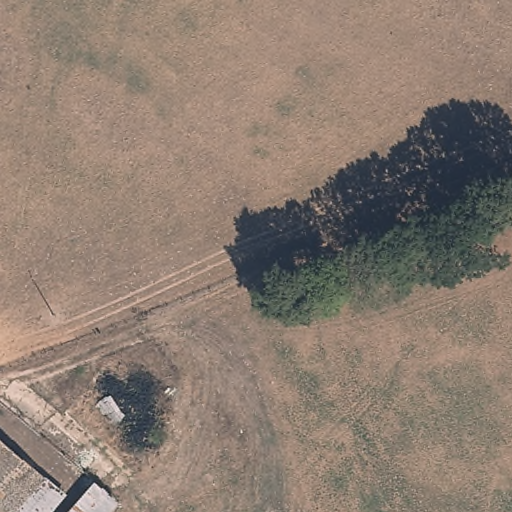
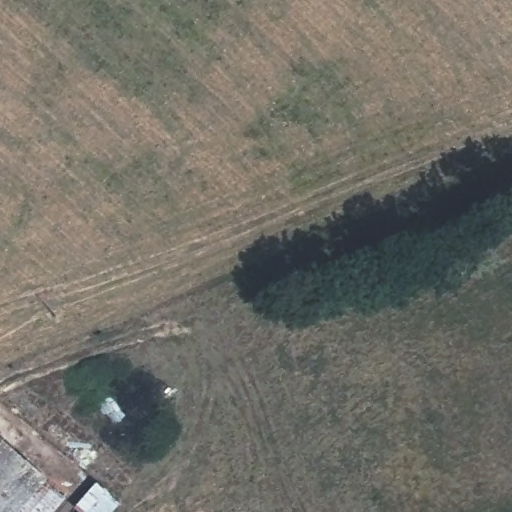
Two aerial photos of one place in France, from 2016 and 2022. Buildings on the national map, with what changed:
unchanged [(0,512),(0,447),(59,499),(48,512),(0,512)]
unchanged [(68,512),(79,500),(91,512),(68,512)]

